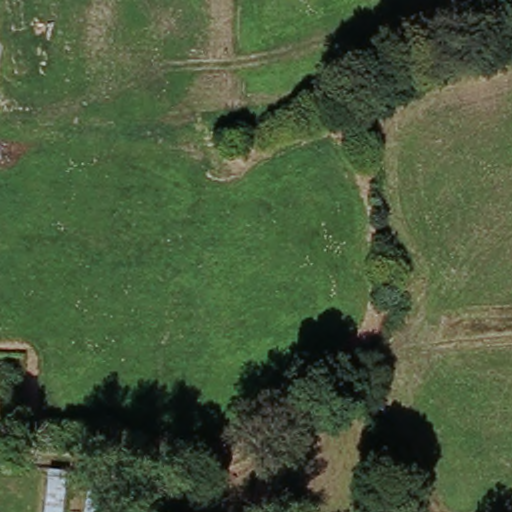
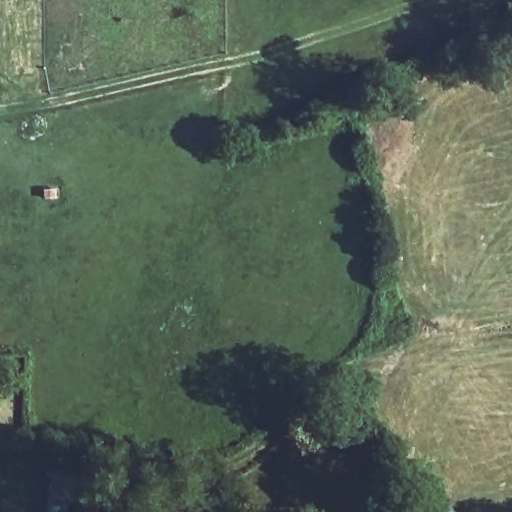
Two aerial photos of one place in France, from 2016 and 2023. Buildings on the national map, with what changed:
unchanged [(76,473),(71,512),(50,512),(54,472),(76,473)]

